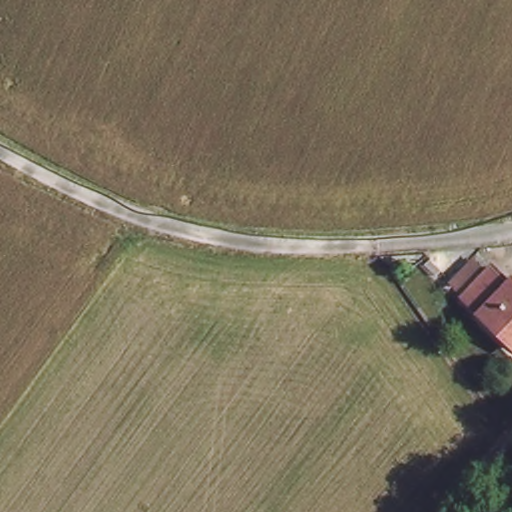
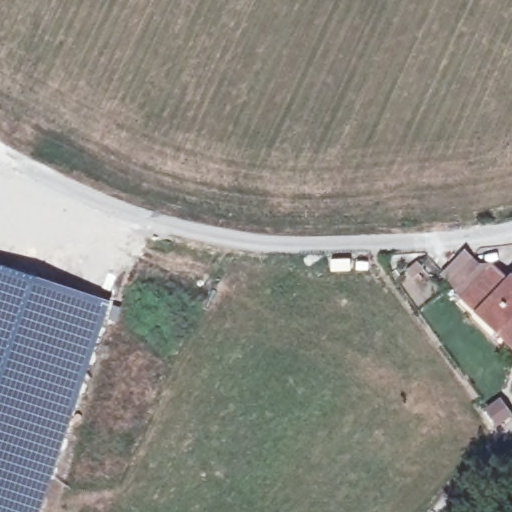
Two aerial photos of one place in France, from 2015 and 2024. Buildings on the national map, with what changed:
new [(112,301),(93,351),(62,448),(45,493),(40,512),(0,512),(0,263),(112,301)]
unchanged [(512,275),(512,331),(480,301),(509,272),(512,275)]

